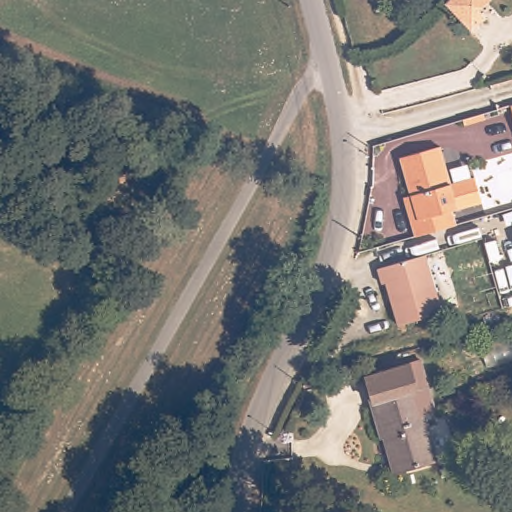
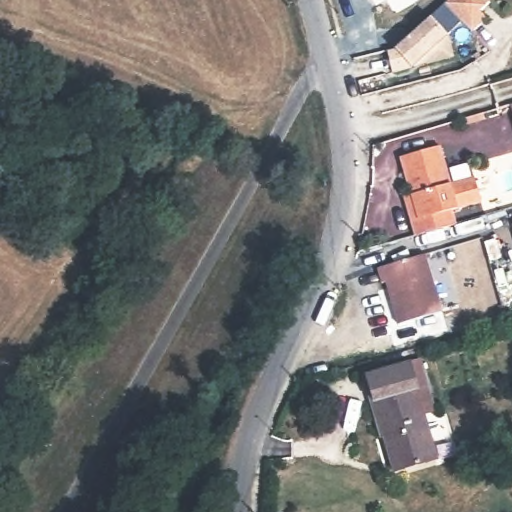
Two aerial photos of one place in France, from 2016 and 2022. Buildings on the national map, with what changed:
unchanged [(443,5),(449,0),(489,0),(490,1),(477,14),(482,20),(467,33),(443,5)]
new [(394,50),(429,17),(443,5),(460,24),(449,35),(454,57),(392,73),(387,51),(394,50)]
unchanged [(508,105),(512,104),(512,115),(508,105)]
unchanged [(410,190),(399,152),(438,141),(446,169),(456,202),(450,204),(453,212),(455,220),(415,232),(410,215),(402,191),(410,190)]
unchanged [(467,161),(472,176),(476,175),(483,201),(453,212),(450,204),(456,202),(451,185),(448,175),(446,169),(467,161)]
unchanged [(442,308),(400,320),(387,280),(383,281),(378,264),(426,250),(442,308)]
unchanged [(431,432),(437,457),(391,470),(372,400),(371,400),(363,372),(422,356),(435,403),(441,429),(431,432)]

